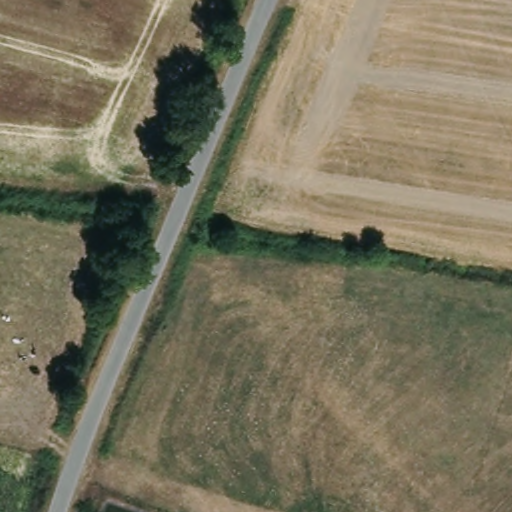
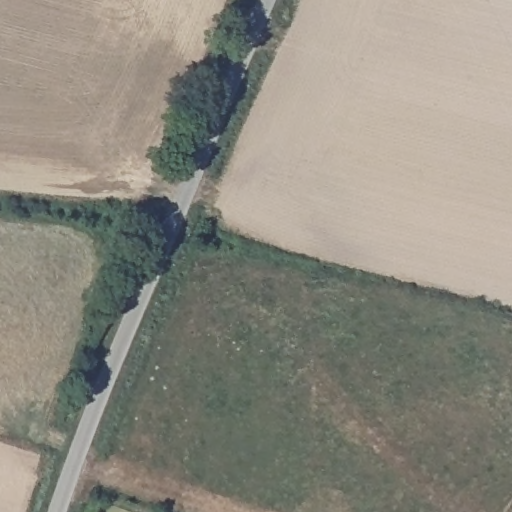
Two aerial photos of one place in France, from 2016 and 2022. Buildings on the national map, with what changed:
[]

